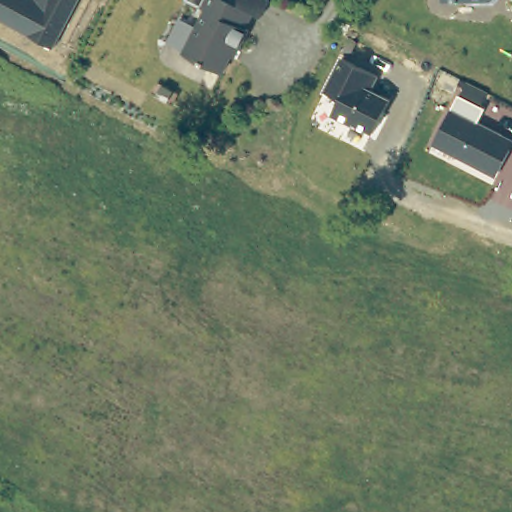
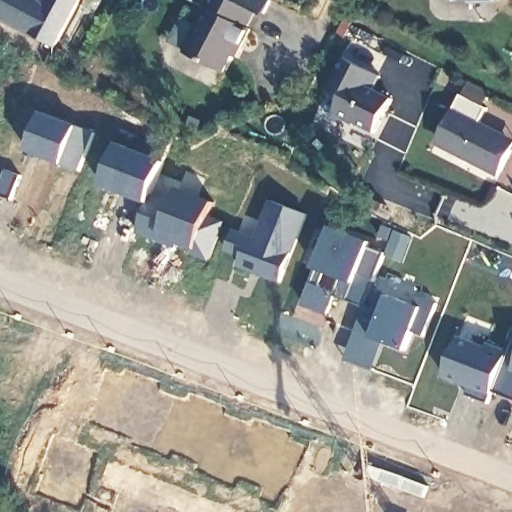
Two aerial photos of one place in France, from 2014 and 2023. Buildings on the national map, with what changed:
unchanged [(0,21),(0,0),(79,0),(54,49),(0,21)]
unchanged [(249,30),(241,47),(236,44),(222,71),(185,52),(197,24),(194,21),(205,0),(234,0),(255,11),(246,28),(249,30)]
unchanged [(255,11),(234,0),(271,0),(263,15),(255,11)]
unchanged [(470,5),(470,3),(445,2),(445,0),(503,0),(500,5),(470,5)]
unchanged [(374,135),(332,115),(339,100),(324,92),(342,57),(381,75),(373,89),(391,100),(374,135)]
unchanged [(434,144),(463,83),(491,96),(477,122),(512,141),(512,148),(499,178),(434,144)]
new [(39,113),(92,133),(77,171),(24,150),(39,113)]
new [(115,145),(148,158),(158,132),(170,139),(148,196),(143,210),(131,205),(134,198),(100,185),(115,145)]
new [(1,170),(18,176),(9,200),(0,197),(0,174),(1,170)]
new [(143,210),(148,196),(170,204),(175,189),(212,202),(206,217),(221,222),(206,260),(191,253),(193,249),(158,235),(156,240),(135,232),(143,210)]
new [(231,231),(254,240),(269,201),(305,215),(279,282),(236,266),(240,257),(224,250),(231,231)]
new [(315,269),(313,268),(329,228),(368,242),(366,247),(383,254),(372,282),(355,276),(345,301),(333,297),(326,314),(301,305),(315,269)]
new [(374,326),(358,320),(362,307),(370,310),(377,292),(412,305),(416,297),(435,304),(415,356),(381,343),(370,338),(374,326)]
new [(358,320),(374,326),(370,338),(381,343),(370,370),(342,360),(358,320)]
new [(466,395),(469,387),(442,376),(456,338),(484,347),(486,344),(507,352),(487,402),(466,395)]
new [(512,339),(512,400),(491,392),(507,352),(512,339)]

